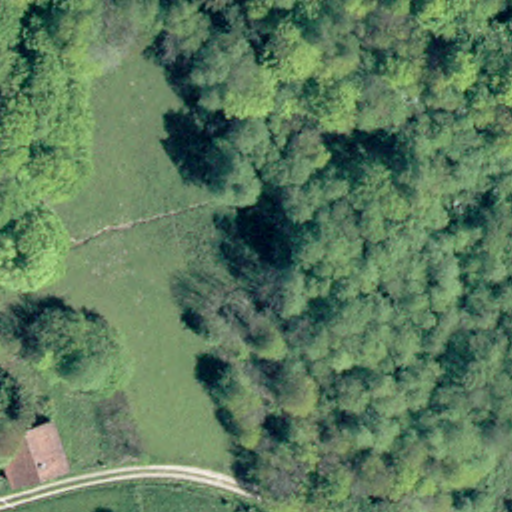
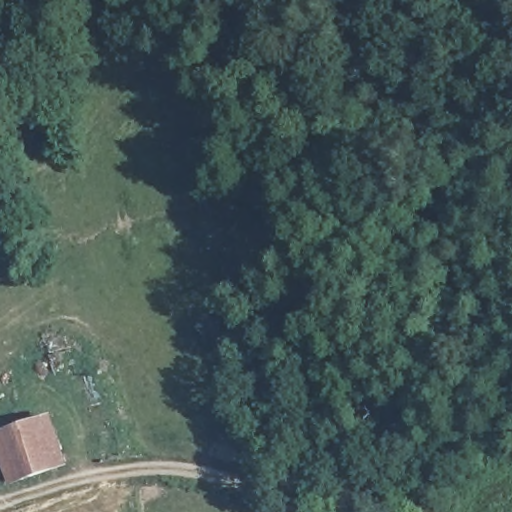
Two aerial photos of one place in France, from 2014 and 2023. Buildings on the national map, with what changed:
unchanged [(54,372),(50,356),(60,353),(64,370),(54,372)]
unchanged [(0,456),(0,438),(50,417),(68,463),(10,483),(0,456)]

